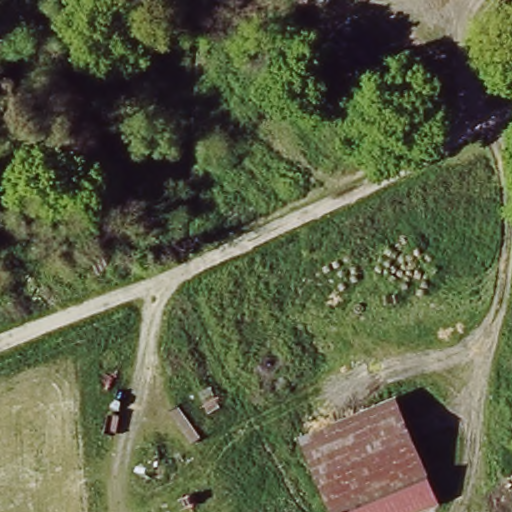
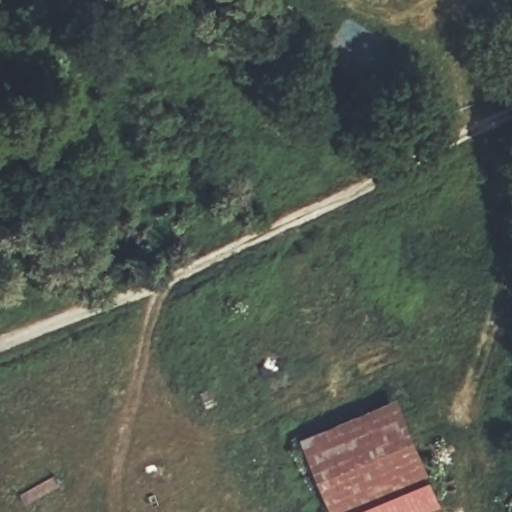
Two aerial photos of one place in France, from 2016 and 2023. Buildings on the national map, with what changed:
unchanged [(445,512),(328,512),(300,446),(398,402),(445,512)]

